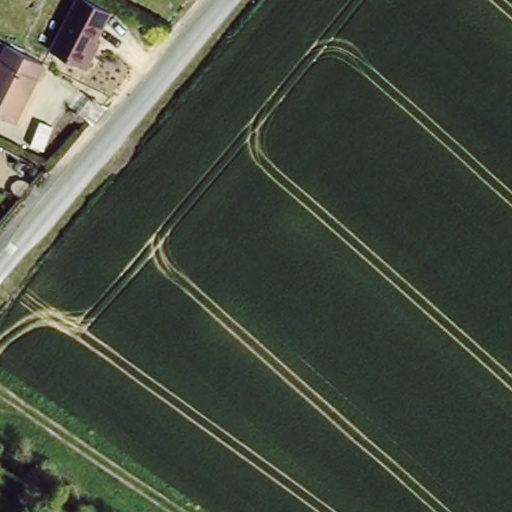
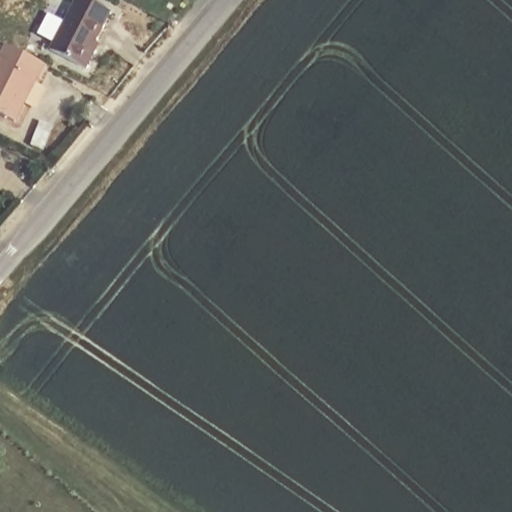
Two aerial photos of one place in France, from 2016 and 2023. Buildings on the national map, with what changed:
unchanged [(90,69),(53,50),(77,0),(92,0),(113,10),(96,44),(101,46),(90,69)]
unchanged [(46,62),(24,123),(0,111),(0,51),(5,38),(46,62)]

